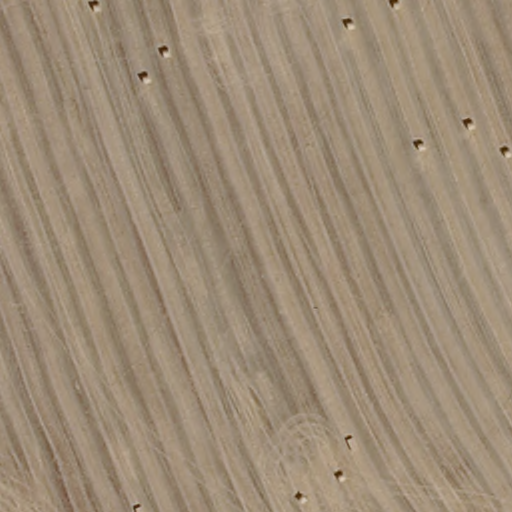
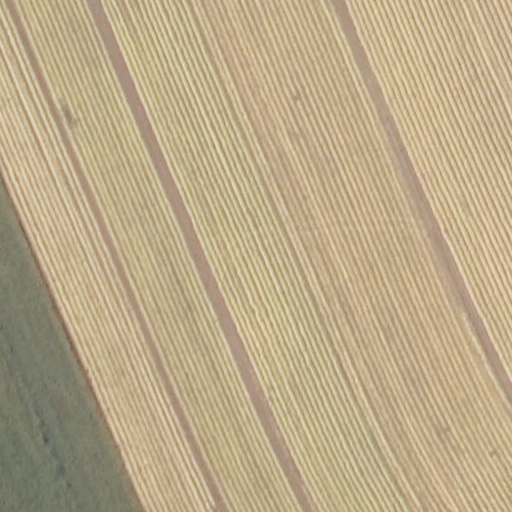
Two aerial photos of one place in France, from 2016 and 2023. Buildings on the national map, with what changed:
[]

